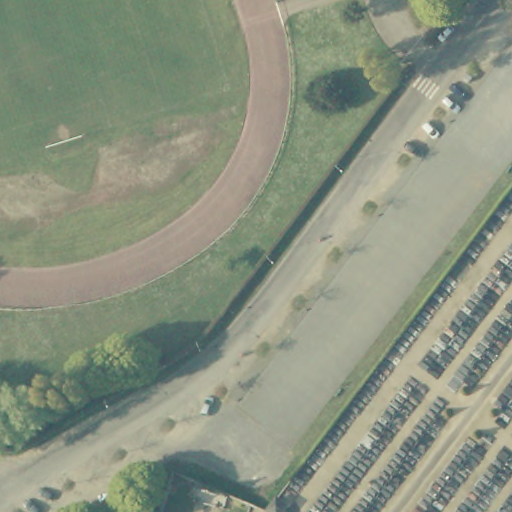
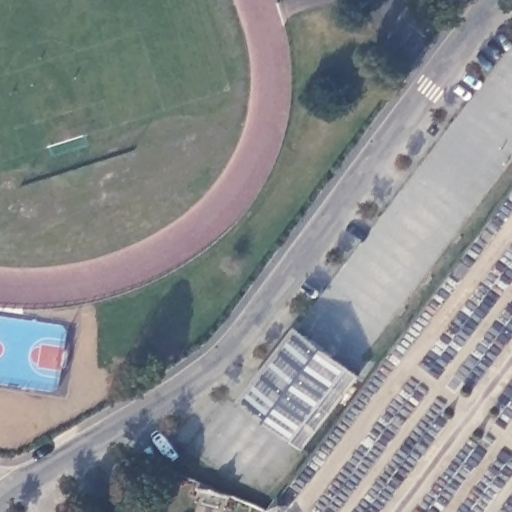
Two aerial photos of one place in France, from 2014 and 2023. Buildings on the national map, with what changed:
new [(302,330),(354,370),(299,442),(247,403),(302,330)]
unchanged [(286,512),(270,512),(277,501),(288,509),(286,512)]

